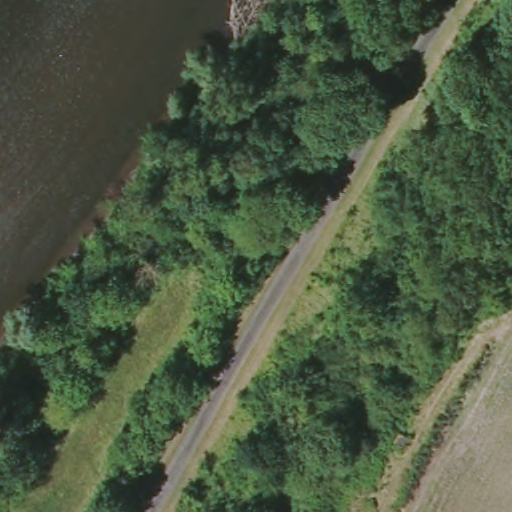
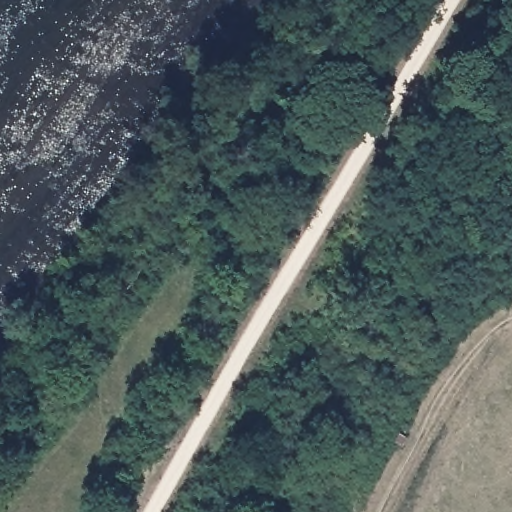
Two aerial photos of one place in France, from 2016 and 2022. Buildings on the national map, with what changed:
unchanged [(394,442),(399,433),(407,438),(402,447),(394,442)]

